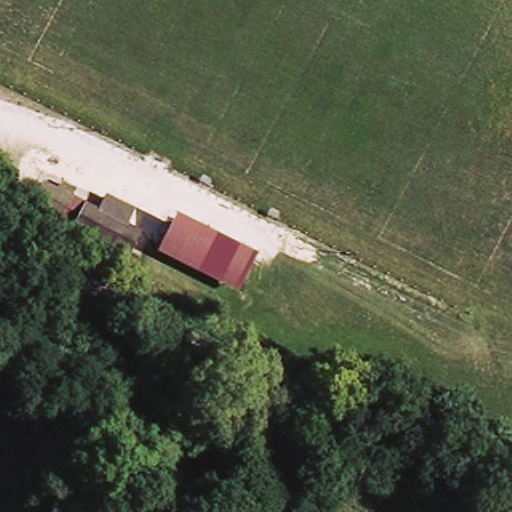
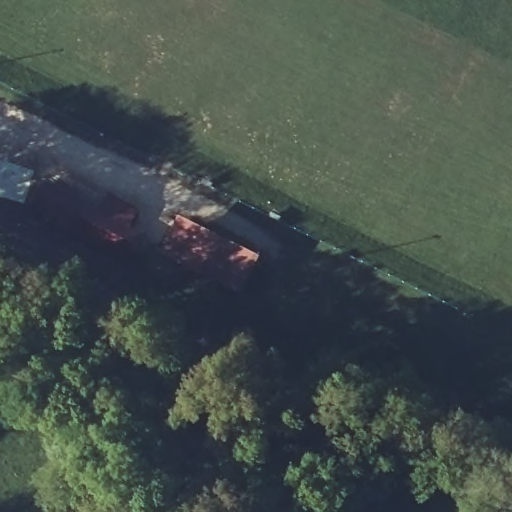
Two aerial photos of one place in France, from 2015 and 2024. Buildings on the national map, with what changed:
unchanged [(25,205),(35,186),(48,194),(57,180),(67,187),(60,201),(50,220),(25,205)]
unchanged [(118,254),(68,227),(79,207),(88,212),(98,195),(125,210),(116,227),(132,235),(118,254)]
unchanged [(170,222),(252,265),(239,289),(158,247),(170,222)]

